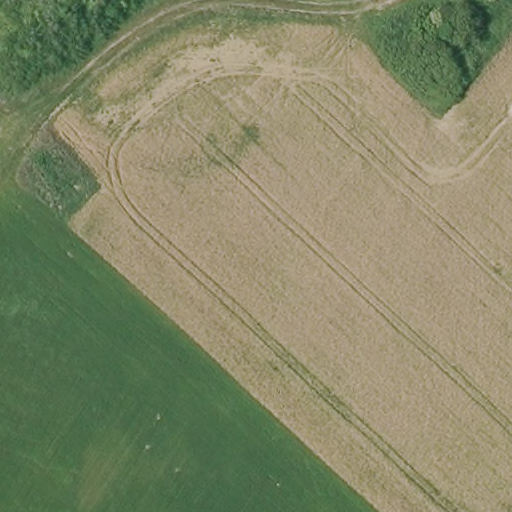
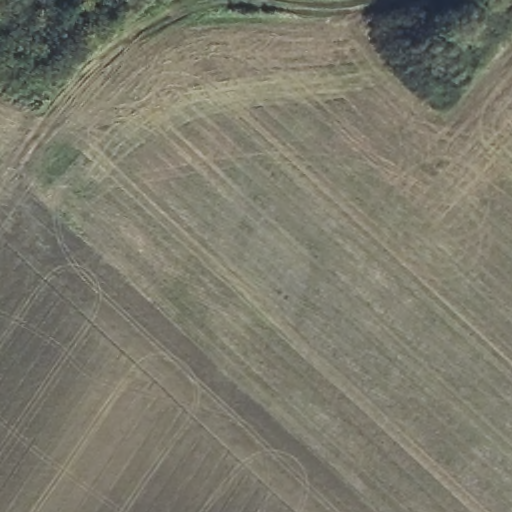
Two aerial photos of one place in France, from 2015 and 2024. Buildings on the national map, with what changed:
unchanged [(477,47),(444,58),(426,21),(462,4),(477,47)]

